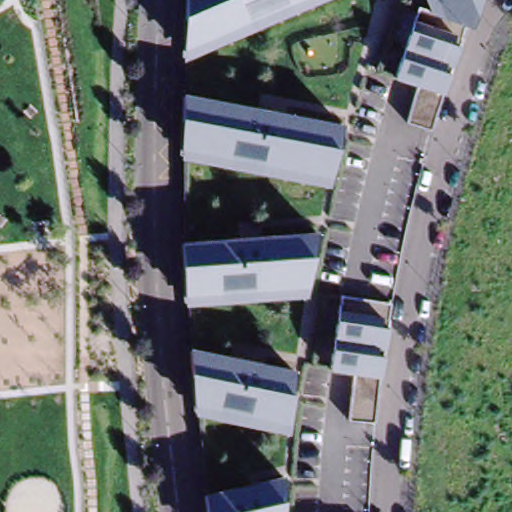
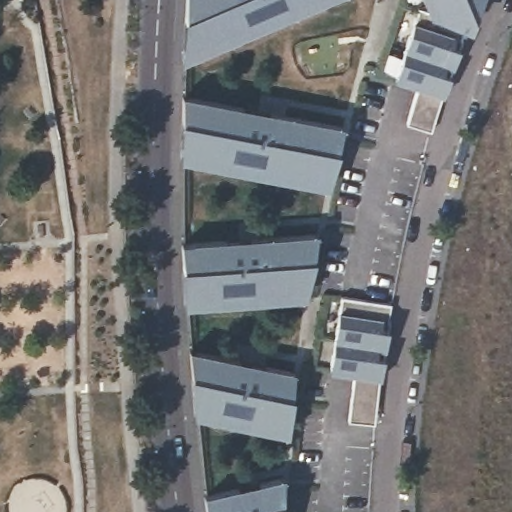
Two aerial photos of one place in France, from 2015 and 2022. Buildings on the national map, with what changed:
unchanged [(183,63),(186,0),(330,0),(183,63)]
unchanged [(418,87),(397,81),(421,10),(429,11),(424,0),(484,0),(473,30),(464,27),(461,47),(444,97),(433,133),(407,125),(418,87)]
unchanged [(344,126),(329,189),(181,160),(183,95),(344,126)]
unchanged [(319,233),(308,297),(186,306),(183,243),(319,233)]
unchanged [(354,376),(331,373),(340,310),(343,296),(392,304),(389,330),(382,380),(377,425),(349,423),(354,376)]
unchanged [(295,372),(289,435),(194,416),(191,348),(295,372)]
unchanged [(284,512),(206,512),(204,495),(284,477),(284,512)]

